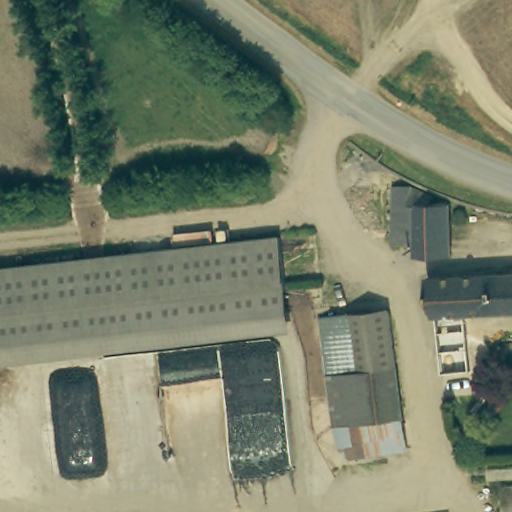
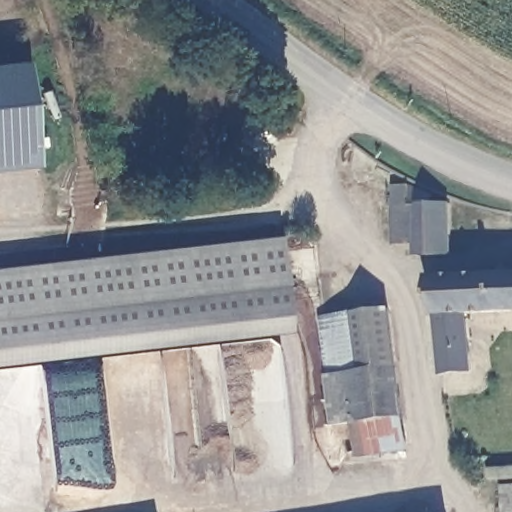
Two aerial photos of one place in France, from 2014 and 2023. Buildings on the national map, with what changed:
new [(36,165),(0,169),(0,63),(26,61),(36,165)]
unchanged [(396,241),(395,184),(415,179),(440,188),(440,197),(456,196),(457,250),(420,251),(419,241),(396,241)]
unchanged [(289,312),(290,331),(0,361),(0,267),(284,238),(289,312)]
unchanged [(472,315),(477,371),(441,372),(431,276),(512,272),(512,311),(472,315)]
unchanged [(390,313),(408,451),(352,457),(341,447),(323,322),(390,313)]

